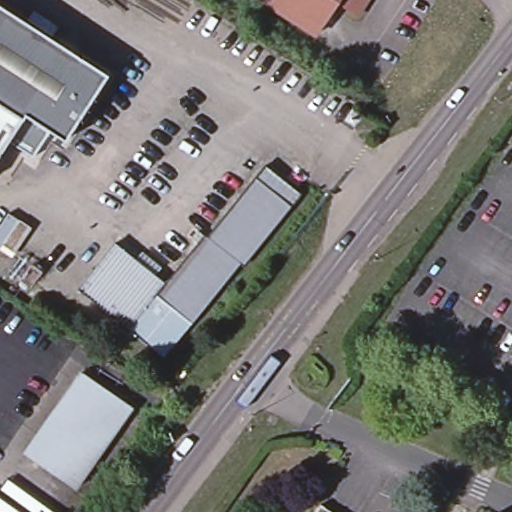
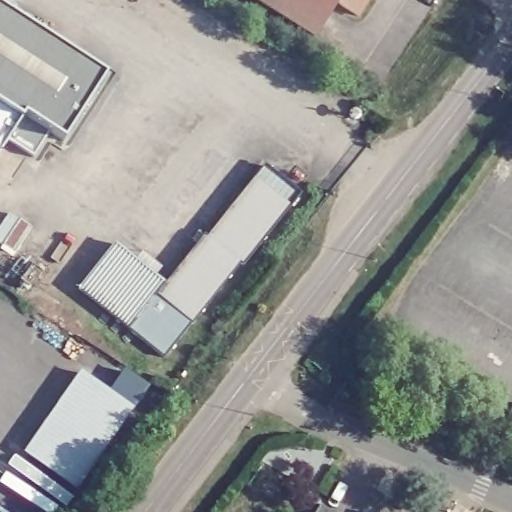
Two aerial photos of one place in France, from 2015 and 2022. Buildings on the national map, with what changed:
unchanged [(267,0),(336,0),(316,31),(267,0)]
unchanged [(340,0),(366,0),(359,11),(340,0)]
unchanged [(0,108),(0,6),(108,76),(66,141),(52,132),(35,157),(9,140),(21,121),(0,108)]
unchanged [(9,140),(0,153),(0,108),(21,121),(9,140)]
unchanged [(210,233),(259,174),(292,201),(245,261),(242,259),(195,318),(160,290),(168,280),(207,231),(210,233)]
unchanged [(159,289),(131,323),(81,284),(117,239),(168,280),(160,290),(159,289)]
unchanged [(187,325),(169,348),(147,331),(165,308),(187,325)]
unchanged [(37,462),(23,452),(71,385),(79,374),(125,406),(129,409),(122,418),(106,442),(76,487),(75,488),(61,512),(49,512),(19,491),(37,462),(55,474),(37,462)]
unchanged [(320,502),(335,512),(314,512),(320,502)]

